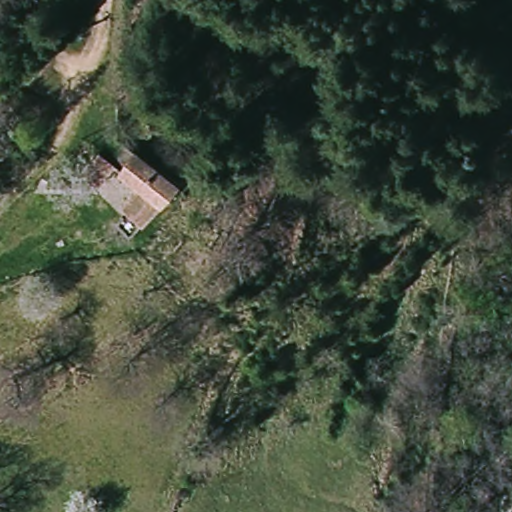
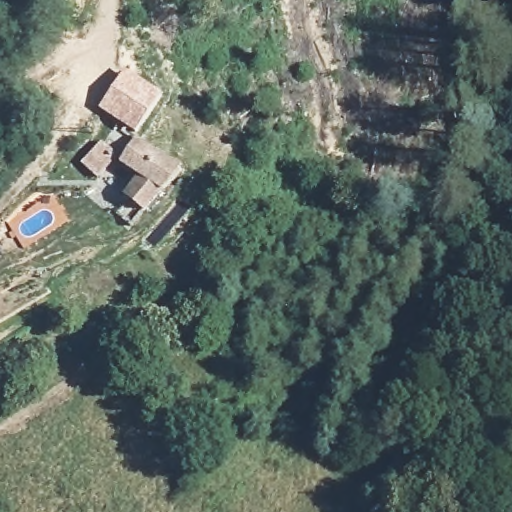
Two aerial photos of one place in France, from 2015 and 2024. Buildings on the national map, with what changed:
new [(164,97),(136,134),(102,108),(126,71),(164,97)]
unchanged [(101,179),(81,165),(100,141),(120,154),(101,179)]
unchanged [(126,192),(143,171),(130,160),(142,142),(181,172),(136,232),(123,222),(110,212),(126,192)]

